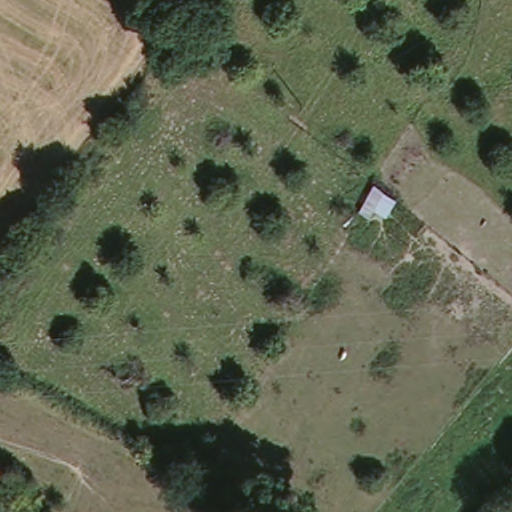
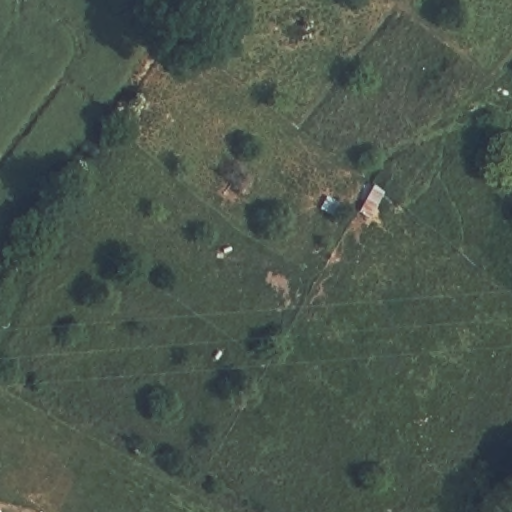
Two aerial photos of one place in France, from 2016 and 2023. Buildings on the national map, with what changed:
unchanged [(45,507),(43,512),(31,512),(35,502),(45,507)]

